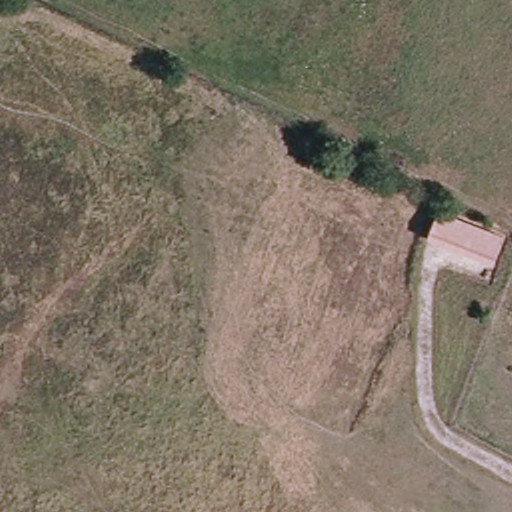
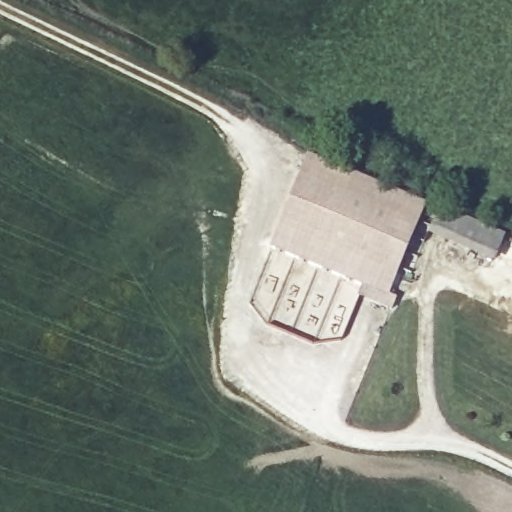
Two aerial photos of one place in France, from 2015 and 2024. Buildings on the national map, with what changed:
new [(306,154),(426,203),(388,297),(269,249),(306,154)]
unchanged [(509,232),(496,260),(428,233),(441,204),(509,232)]

